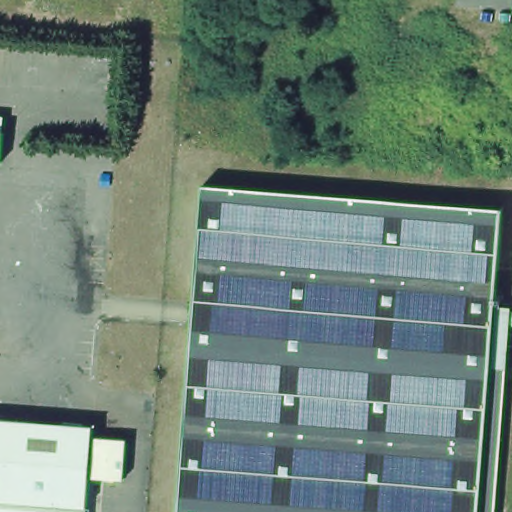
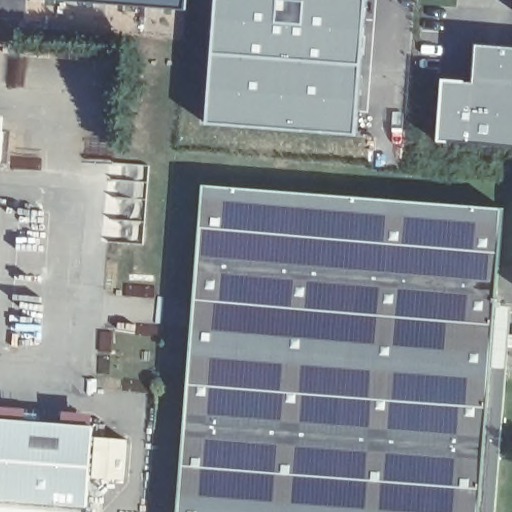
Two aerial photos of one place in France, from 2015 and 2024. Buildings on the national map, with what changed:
new [(187,11),(55,0),(187,0),(187,11)]
new [(352,138),(200,126),(211,0),(361,0),(352,138)]
unchanged [(509,0),(512,0),(512,20),(508,19),(509,0)]
new [(433,145),(437,82),(472,84),(473,47),(512,50),(512,149),(433,145)]
demolished [(62,283),(12,280),(18,178),(67,181),(62,283)]
unchanged [(497,210),(484,369),(499,370),(488,512),(169,512),(195,187),(497,210)]
unchanged [(90,429),(90,443),(119,446),(117,485),(88,482),(85,512),(0,512),(0,424),(90,429)]

